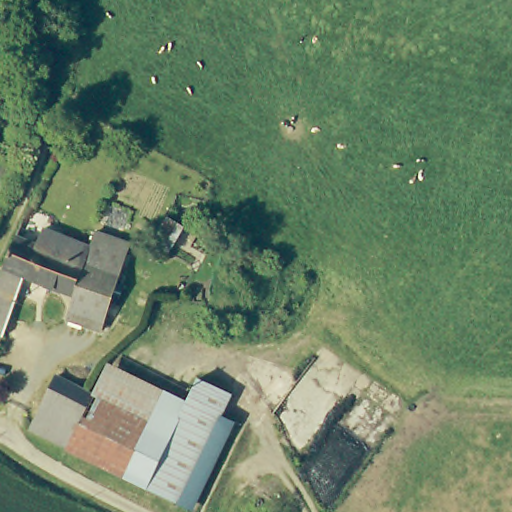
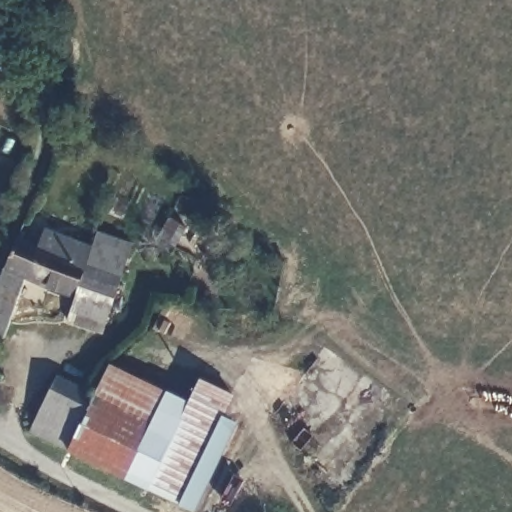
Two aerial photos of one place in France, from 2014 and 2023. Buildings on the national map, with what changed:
unchanged [(171,267),(148,255),(168,215),(191,227),(171,267)]
unchanged [(197,225),(221,237),(203,273),(179,261),(197,225)]
unchanged [(3,268),(17,236),(38,245),(44,229),(92,247),(97,232),(131,244),(121,273),(120,276),(114,297),(105,319),(100,333),(67,321),(74,301),(23,278),(2,337),(0,336),(0,276),(3,268)]
unchanged [(69,443),(92,397),(109,362),(187,401),(199,377),(234,394),(222,418),(228,422),(185,507),(180,505),(145,487),(125,477),(66,448),(69,443)]
unchanged [(28,429),(54,377),(92,397),(69,443),(66,448),(28,429)]

